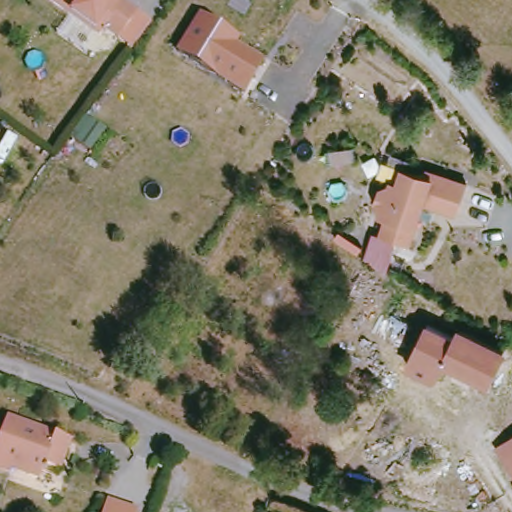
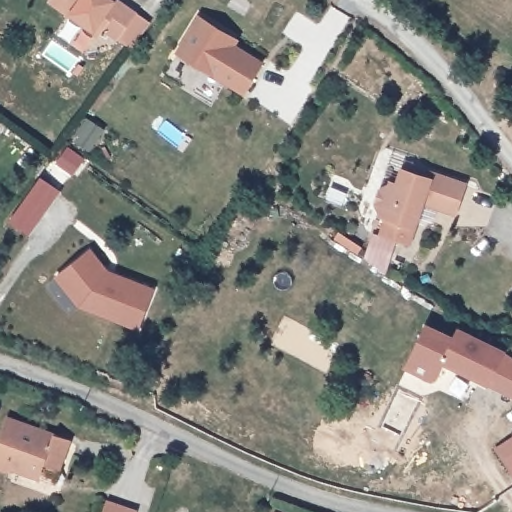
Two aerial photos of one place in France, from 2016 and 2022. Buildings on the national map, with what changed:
unchanged [(142,21),(126,44),(113,34),(99,25),(94,32),(49,0),(120,0),(132,8),(145,17),(142,21)]
unchanged [(231,36),(228,41),(262,63),(243,93),(177,51),(200,16),(231,36)]
new [(68,148),(83,159),(72,175),(57,163),(68,148)]
unchanged [(373,256),(380,234),(385,235),(391,218),(384,216),(385,212),(380,202),(385,189),(395,185),(396,181),(402,183),(407,168),(436,177),(438,172),(472,184),(461,215),(429,203),(415,245),(400,240),(390,268),(373,256)]
new [(40,178),(58,191),(30,232),(12,220),(40,178)]
new [(79,306),(55,276),(92,248),(110,271),(155,288),(137,330),(79,306)]
unchanged [(504,352),(490,383),(444,361),(458,331),(504,352)]
unchanged [(47,467),(45,471),(43,470),(40,479),(28,475),(29,472),(12,467),(10,473),(0,469),(0,436),(7,417),(70,440),(59,472),(47,467)]
unchanged [(496,448),(512,439),(512,472),(496,448)]
unchanged [(135,512),(102,512),(104,503),(135,512)]

